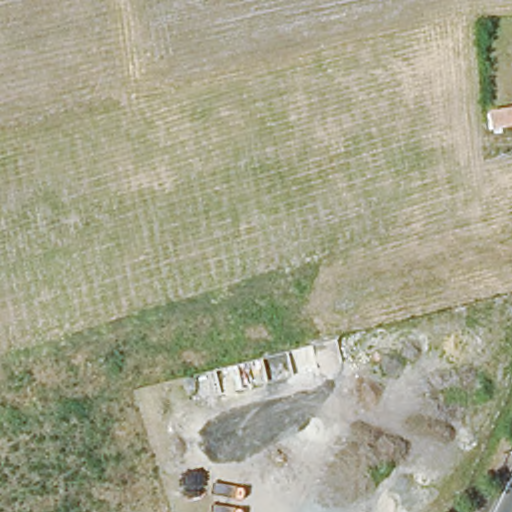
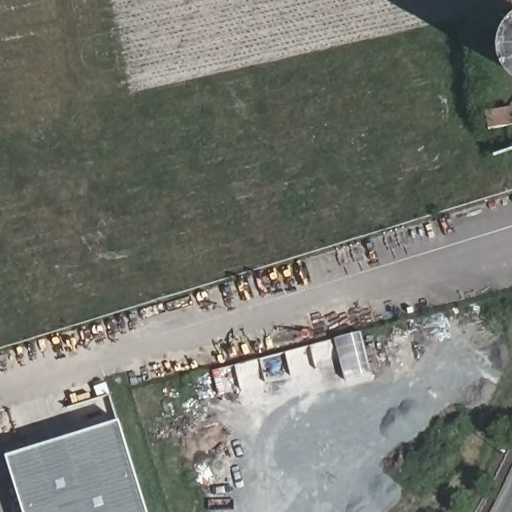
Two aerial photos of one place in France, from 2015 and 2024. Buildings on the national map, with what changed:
unchanged [(512,110),(512,126),(489,130),(486,114),(512,110)]
new [(148,512),(23,512),(7,461),(120,424),(148,512)]

